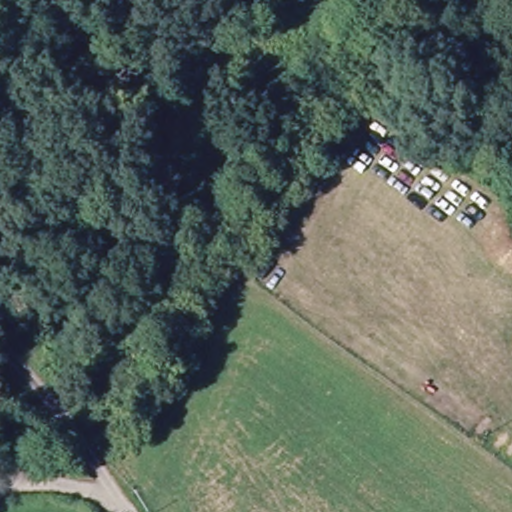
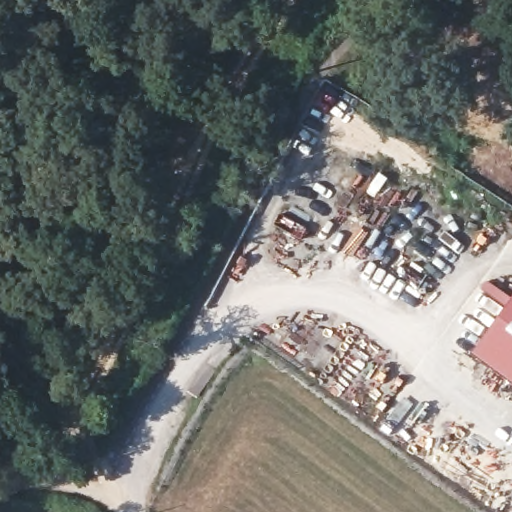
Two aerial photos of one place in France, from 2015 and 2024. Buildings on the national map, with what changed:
new [(472,355),(512,301),(512,384),(472,355)]

